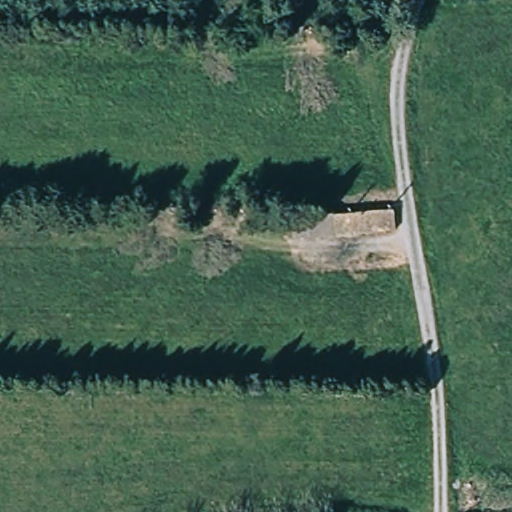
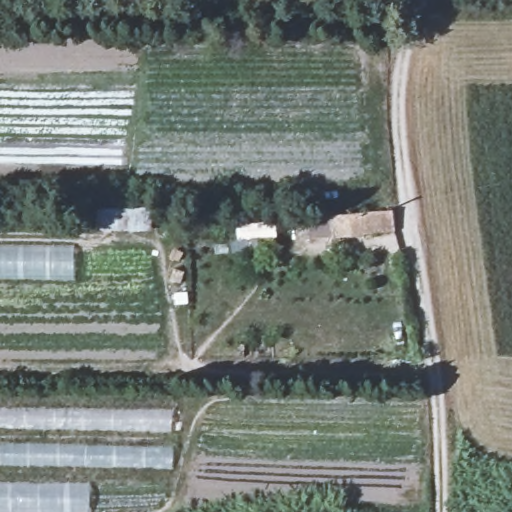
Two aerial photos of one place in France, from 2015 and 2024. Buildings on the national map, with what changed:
unchanged [(373,234),(311,237),(311,232),(306,232),(306,219),(373,217),(373,234)]
new [(74,281),(0,280),(0,245),(75,246),(74,281)]
new [(172,432),(0,429),(0,407),(172,411),(172,432)]
new [(173,470),(0,466),(0,444),(173,448),(173,470)]
new [(90,512),(0,512),(0,483),(90,484),(90,512)]

